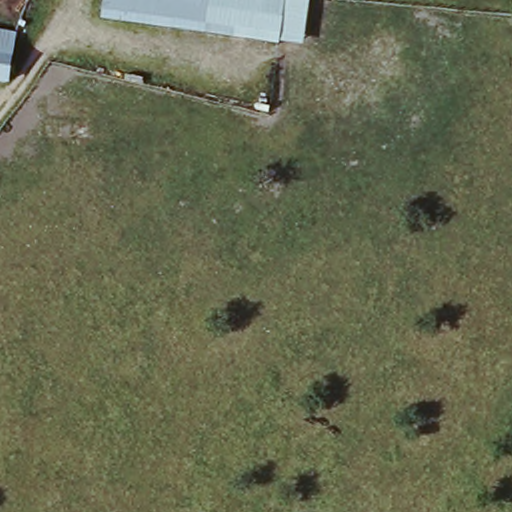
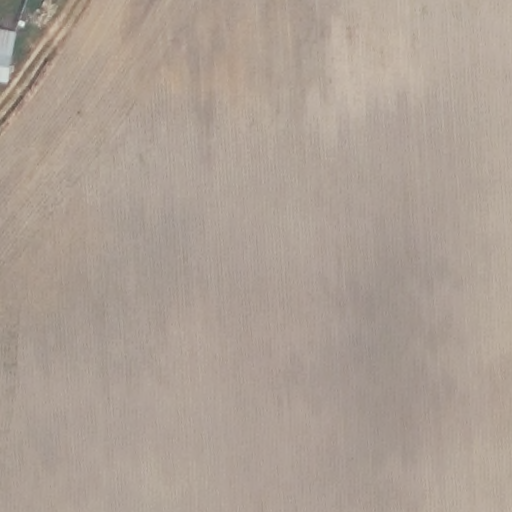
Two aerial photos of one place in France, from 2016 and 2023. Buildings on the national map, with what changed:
demolished [(99,25),(102,0),(209,0),(204,39),(99,25)]
demolished [(303,0),(296,48),(204,39),(209,0),(303,0)]
unchanged [(8,38),(5,85),(0,85),(0,37),(8,38)]

